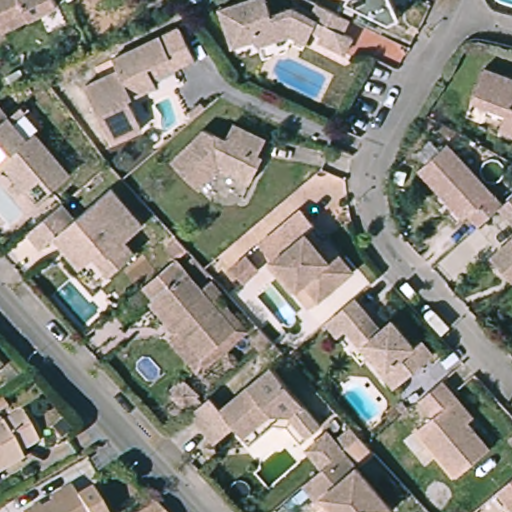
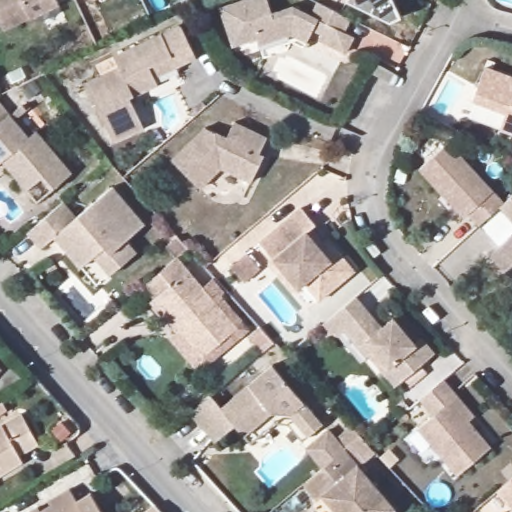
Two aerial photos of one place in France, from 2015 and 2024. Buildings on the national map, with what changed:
unchanged [(59,4),(4,30),(0,20),(0,0),(57,0),(59,4)]
unchanged [(92,2),(91,0),(95,0),(92,2)]
unchanged [(342,29),(349,33),(343,49),(314,37),(316,28),(311,25),(304,37),(288,30),(256,43),(253,37),(233,46),(218,9),(237,0),(261,0),(266,13),(293,3),(310,12),(316,0),(319,0),(348,15),(342,29)]
unchanged [(399,20),(388,25),(346,3),(347,0),(390,0),(399,20)]
unchanged [(128,92),(144,123),(115,137),(86,79),(121,64),(115,52),(180,23),(195,53),(176,62),(153,72),(157,81),(128,92)]
unchanged [(499,128),(501,119),(503,111),(473,99),(484,66),(512,75),(512,132),(499,128)]
unchanged [(3,156),(0,158),(0,109),(5,115),(10,110),(29,133),(36,128),(72,169),(53,186),(38,198),(28,186),(3,156)]
unchanged [(223,186),(211,197),(198,185),(170,157),(199,122),(221,133),(228,116),(266,134),(258,149),(262,152),(249,178),(242,193),(223,186)]
unchanged [(418,167),(449,140),(503,200),(499,203),(478,223),(469,213),(463,217),(447,199),(438,189),(418,167)]
unchanged [(63,204),(76,218),(111,189),(141,221),(121,237),(138,258),(114,278),(100,260),(84,272),(55,237),(41,249),(29,232),(63,204)]
unchanged [(499,203),(503,200),(512,192),(512,217),(499,203)]
unchanged [(344,279),(323,296),(308,281),(296,287),(272,260),(278,255),(264,240),(304,205),(319,223),(314,227),(327,240),(331,237),(348,256),(358,268),(344,279)]
unchanged [(510,274),(491,253),(512,233),(512,276),(510,274)]
unchanged [(151,303),(154,300),(143,286),(186,249),(196,260),(185,269),(238,330),(203,357),(181,328),(176,332),(151,303)]
unchanged [(251,251),(264,266),(249,279),(236,264),(251,251)]
unchanged [(374,334),(386,325),(409,351),(416,346),(427,361),(394,388),(346,330),(332,341),(320,329),(349,304),(374,334)]
unchanged [(212,400),(220,409),(271,366),(323,424),(303,440),(289,428),(273,426),(253,443),(237,427),(217,444),(193,416),(212,400)]
unchanged [(193,389),(180,398),(168,387),(171,382),(168,378),(173,374),(179,377),(183,376),(193,389)]
unchanged [(442,383),(474,417),(467,422),(489,448),(458,476),(419,428),(434,415),(421,401),(442,383)]
unchanged [(24,451),(7,462),(9,467),(0,472),(0,423),(5,420),(24,451)]
unchanged [(338,425),(343,432),(356,422),(366,433),(374,442),(376,445),(361,458),(399,505),(390,512),(325,512),(316,502),(312,506),(300,491),(333,463),(316,443),(338,425)]
unchanged [(498,493),(512,481),(512,509),(498,493)]
unchanged [(100,512),(43,512),(50,507),(47,503),(68,490),(70,495),(75,503),(90,495),(100,512)]
unchanged [(38,512),(31,512),(36,509),(38,512)]
unchanged [(157,512),(149,512),(154,509),(157,512)]

